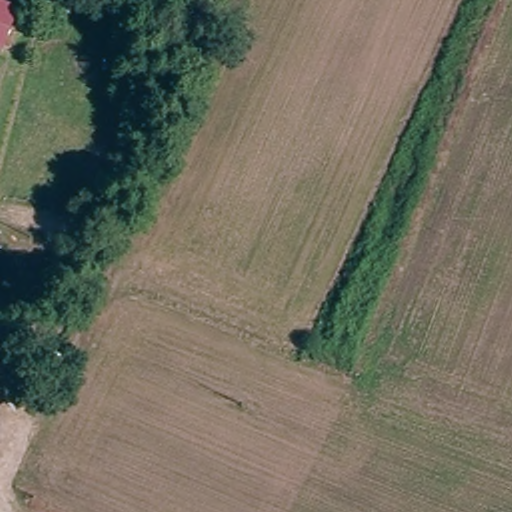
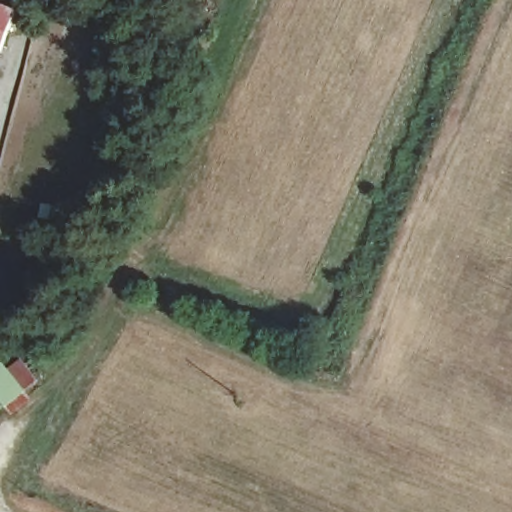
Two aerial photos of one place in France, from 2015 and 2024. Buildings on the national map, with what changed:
unchanged [(0,46),(0,0),(3,0),(20,4),(9,48),(0,46)]
new [(0,413),(0,367),(11,359),(41,393),(15,414),(9,405),(0,413)]

